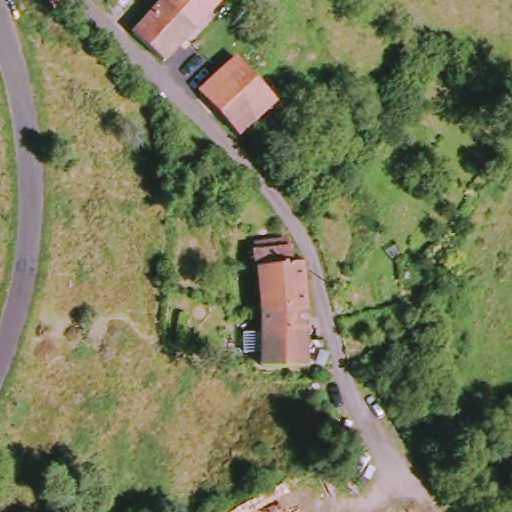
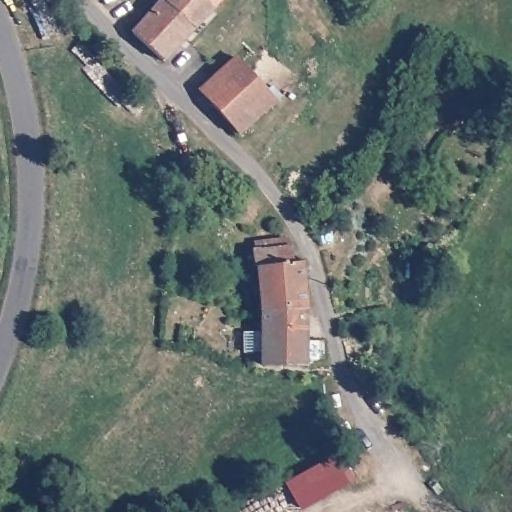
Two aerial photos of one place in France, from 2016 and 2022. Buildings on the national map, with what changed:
unchanged [(168,61),(138,32),(166,0),(223,0),(211,13),(168,61)]
unchanged [(204,89),(243,56),(281,99),(241,133),(204,89)]
unchanged [(314,236),(333,228),(338,244),(322,250),(314,236)]
unchanged [(259,257),(261,256),(260,232),(281,229),(285,235),(287,255),(299,254),(303,271),(303,299),(264,304),(259,257)]
unchanged [(323,355),(319,354),(305,353),(305,355),(264,353),(264,347),(249,348),(249,326),(264,326),(264,304),(303,299),(304,331),(316,331),(324,332),(323,355)]
new [(303,510),(286,483),(332,457),(348,484),(303,510)]

